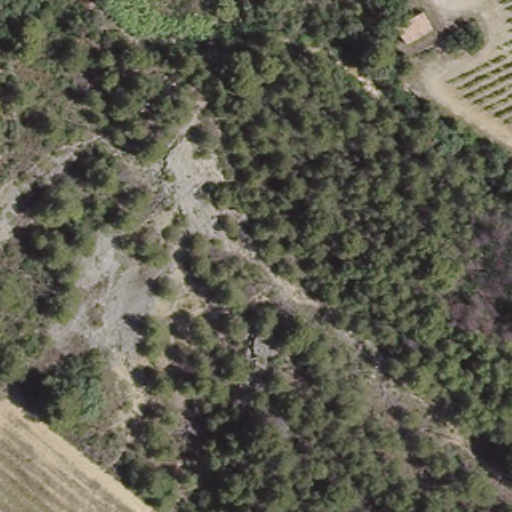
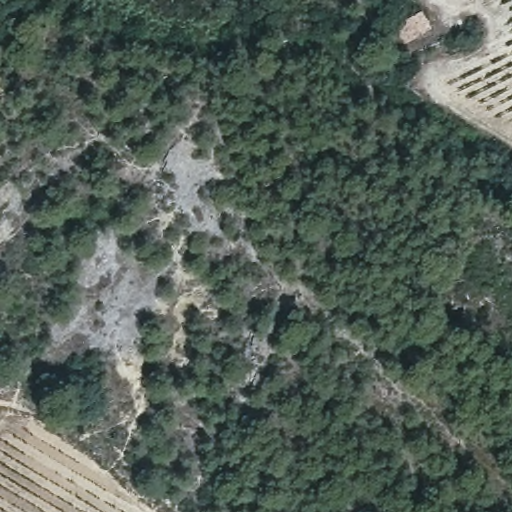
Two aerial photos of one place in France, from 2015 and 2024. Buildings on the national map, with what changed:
unchanged [(426,30),(404,42),(395,22),(419,12),(426,30)]

